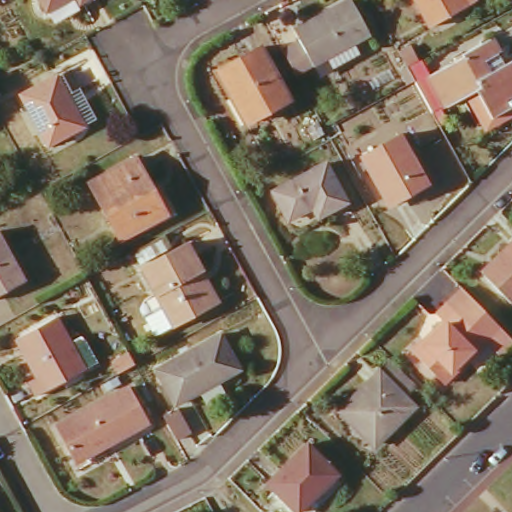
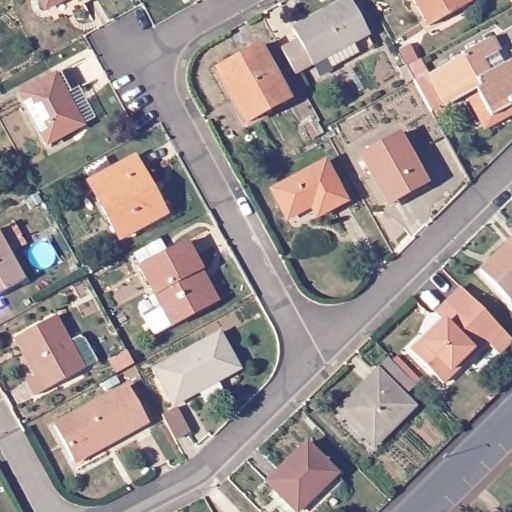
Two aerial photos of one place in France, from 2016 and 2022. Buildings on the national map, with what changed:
unchanged [(38,0),(65,0),(44,11),(38,0)]
unchanged [(79,0),(87,0),(81,3),(79,0)]
unchanged [(313,58),(292,69),(279,46),(296,36),(292,27),(342,0),(349,0),(366,29),(351,38),(357,49),(319,69),(313,58)]
unchanged [(459,0),(461,4),(422,26),(407,0),(459,0)]
unchanged [(465,56),(464,51),(489,36),(498,52),(485,60),(492,72),(512,61),(512,105),(495,114),(480,91),(452,107),(433,74),(465,56)]
unchanged [(217,73),(256,51),(285,100),(244,122),(217,73)]
unchanged [(401,72),(410,66),(418,80),(409,86),(401,72)]
unchanged [(20,93),(52,75),(78,122),(45,140),(20,93)]
unchanged [(400,137),(425,181),(389,203),(364,158),(400,137)]
unchanged [(87,181),(133,156),(161,214),(117,238),(87,181)]
unchanged [(274,195),(323,167),(344,201),(318,216),(312,209),(289,221),(274,195)]
unchanged [(21,279),(0,290),(0,241),(21,279)]
unchanged [(146,264),(187,242),(218,302),(151,335),(141,316),(165,304),(146,264)]
unchanged [(510,307),(480,277),(512,245),(512,305),(510,307)]
unchanged [(486,362),(473,349),(430,390),(397,356),(411,344),(414,346),(432,328),(424,321),(449,296),(488,336),(500,348),(486,362)]
unchanged [(30,394),(22,379),(33,373),(21,351),(15,353),(8,339),(52,315),(66,342),(77,337),(89,359),(77,364),(79,367),(30,394)]
unchanged [(156,370),(219,337),(237,371),(173,403),(156,370)]
unchanged [(118,350),(125,363),(125,364),(111,371),(104,359),(118,350)]
unchanged [(379,369),(387,361),(412,387),(405,396),(379,369)]
unchanged [(374,373),(408,406),(370,442),(337,409),(374,373)]
unchanged [(57,425),(127,388),(144,421),(74,458),(57,425)]
unchanged [(162,413),(175,405),(188,429),(174,436),(162,413)]
unchanged [(264,485),(303,448),(331,477),(295,512),(290,512),(264,485)]

